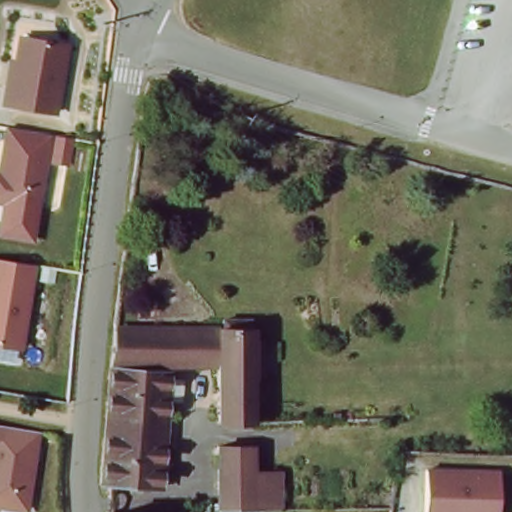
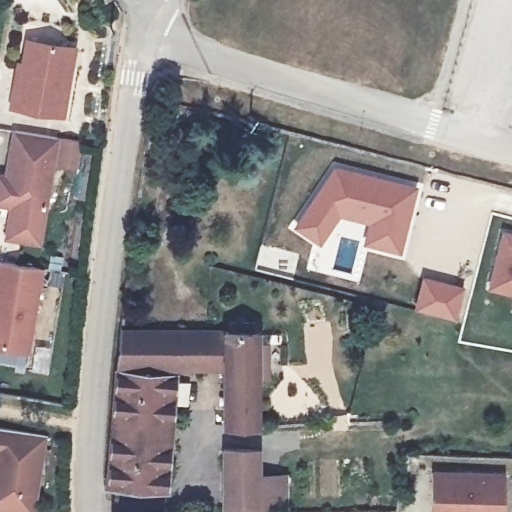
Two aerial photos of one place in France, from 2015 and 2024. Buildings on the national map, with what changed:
unchanged [(69,120),(13,112),(27,42),(83,52),(69,120)]
unchanged [(0,213),(0,173),(9,173),(17,133),(65,140),(57,219),(0,213)]
new [(362,243),(367,222),(340,214),(320,243),(293,225),(333,163),(418,185),(402,252),(362,243)]
new [(487,288),(502,231),(512,234),(512,295),(487,288)]
unchanged [(0,351),(0,265),(52,273),(36,356),(0,351)]
new [(464,285),(455,317),(413,306),(422,274),(464,285)]
unchanged [(202,370),(175,371),(172,483),(122,485),(112,485),(116,421),(120,338),(121,329),(202,330),(202,370)]
unchanged [(202,330),(254,330),(254,426),(252,426),(221,426),(219,426),(219,370),(202,370),(202,330)]
unchanged [(37,512),(0,512),(0,428),(49,436),(37,512)]
unchanged [(278,508),(261,512),(222,512),(223,448),(259,448),(259,482),(278,482),(278,508)]
unchanged [(505,512),(436,512),(439,471),(507,477),(505,512)]

